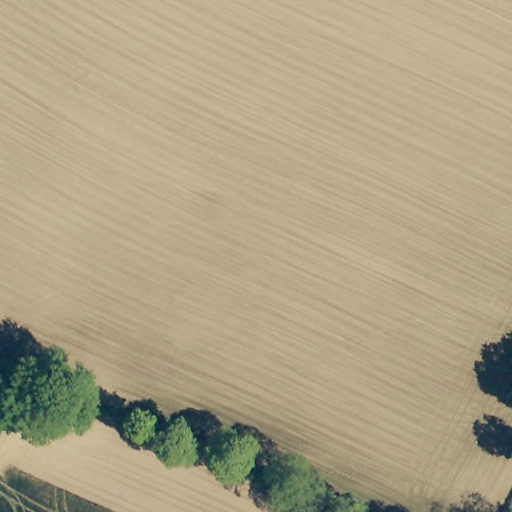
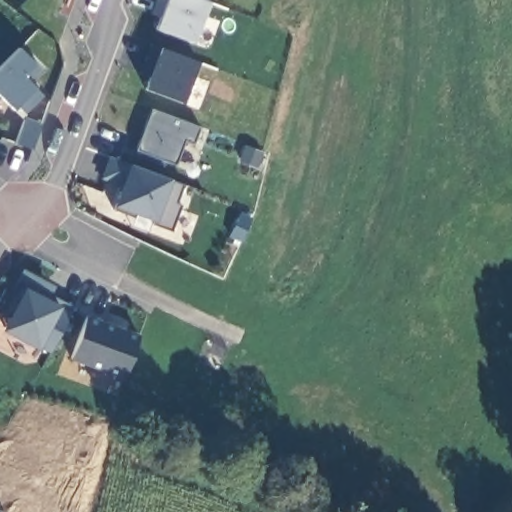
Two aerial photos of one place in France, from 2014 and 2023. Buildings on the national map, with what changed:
new [(192,42),(150,29),(159,0),(209,0),(192,42)]
new [(182,102),(144,87),(158,46),(198,62),(182,102)]
new [(31,85),(46,100),(29,148),(14,142),(22,117),(12,106),(0,96),(0,67),(19,47),(33,62),(22,74),(31,85)]
new [(191,144),(181,140),(172,163),(135,149),(151,107),(198,125),(191,144)]
new [(172,202),(177,204),(167,229),(148,223),(149,218),(112,205),(118,185),(99,178),(106,154),(132,163),(172,179),(180,183),(172,202)]
new [(72,306),(47,355),(35,349),(0,330),(7,317),(0,314),(0,293),(3,286),(11,289),(22,268),(56,285),(54,295),(72,306)]
new [(122,378),(68,358),(85,315),(138,334),(122,378)]

